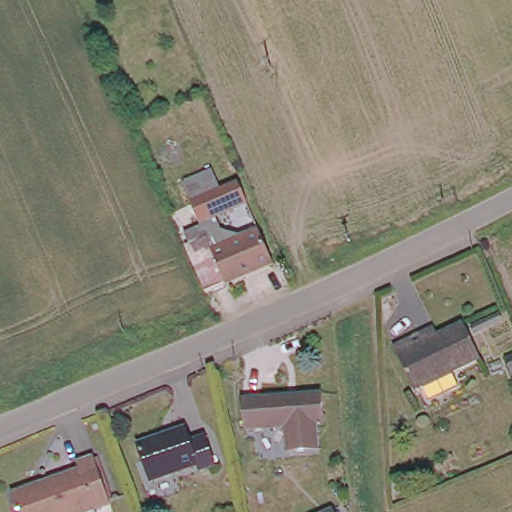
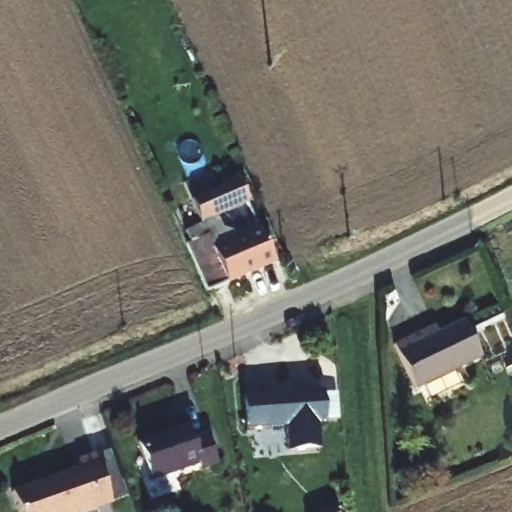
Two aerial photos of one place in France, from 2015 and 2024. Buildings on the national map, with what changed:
unchanged [(219,188),(236,181),(245,200),(199,220),(182,182),(211,169),(219,188)]
unchanged [(185,246),(189,243),(184,232),(215,218),(226,243),(259,230),(273,262),(206,291),(185,246)]
unchanged [(481,359),(453,372),(459,385),(429,400),(423,386),(414,390),(394,346),(409,339),(438,325),(442,334),(463,324),(481,359)]
unchanged [(504,357),(512,353),(512,375),(504,357)]
unchanged [(328,422),(321,422),(323,449),(291,451),(289,426),(248,428),(247,398),(324,392),(328,422)]
unchanged [(195,442),(209,437),(220,464),(206,469),(204,464),(155,481),(141,444),(189,426),(195,442)]
unchanged [(96,460),(113,507),(98,512),(19,512),(14,498),(82,474),(79,468),(96,460)]
unchanged [(324,512),(333,509),(334,512),(324,512)]

